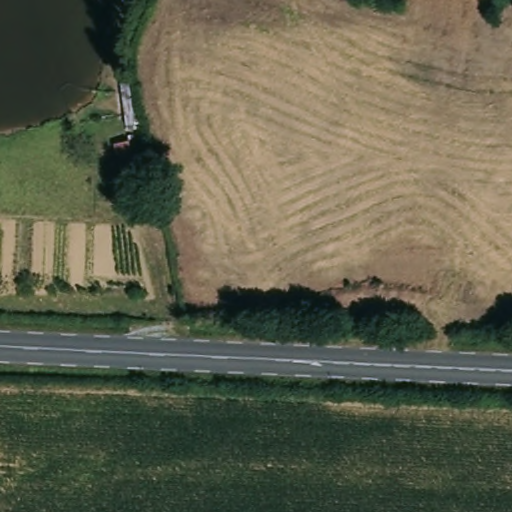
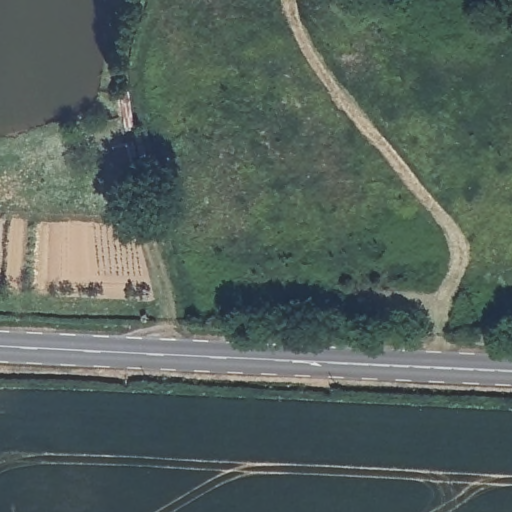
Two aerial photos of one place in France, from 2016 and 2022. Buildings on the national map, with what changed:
unchanged [(136,157),(142,184),(129,186),(123,160),(136,157)]

